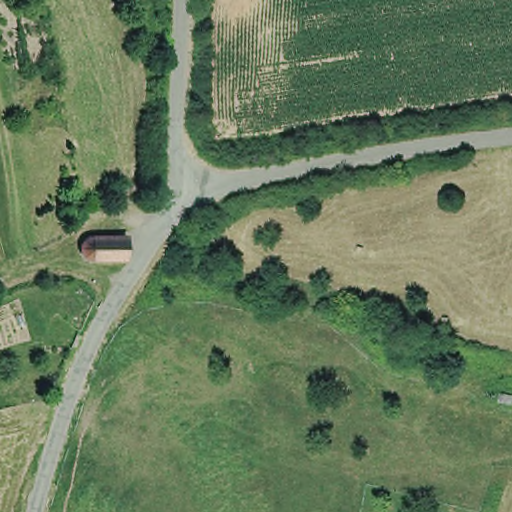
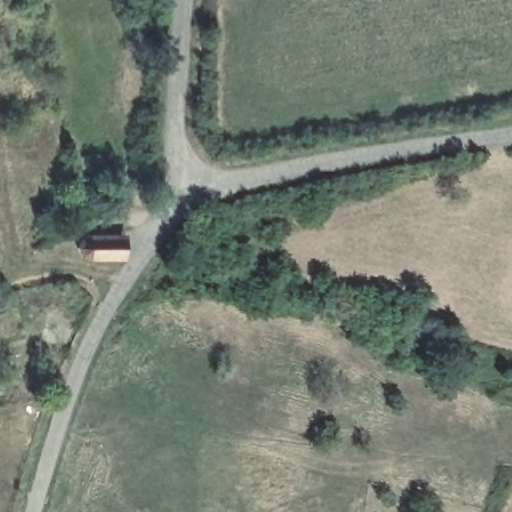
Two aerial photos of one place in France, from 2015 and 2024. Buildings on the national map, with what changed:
unchanged [(85,249),(87,245),(92,243),(124,245),(124,267),(90,266),(85,262),(84,258),(83,254),(85,249)]

